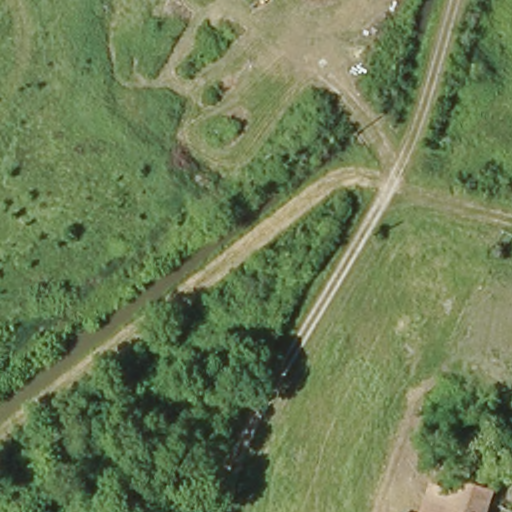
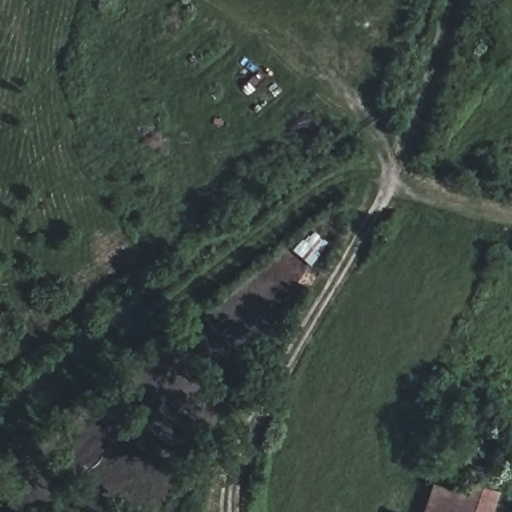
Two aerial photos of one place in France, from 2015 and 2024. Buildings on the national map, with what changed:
unchanged [(431,483),(458,492),(461,483),(497,496),(492,511),(491,512),(440,512),(439,512),(438,512),(421,512),(431,483)]

